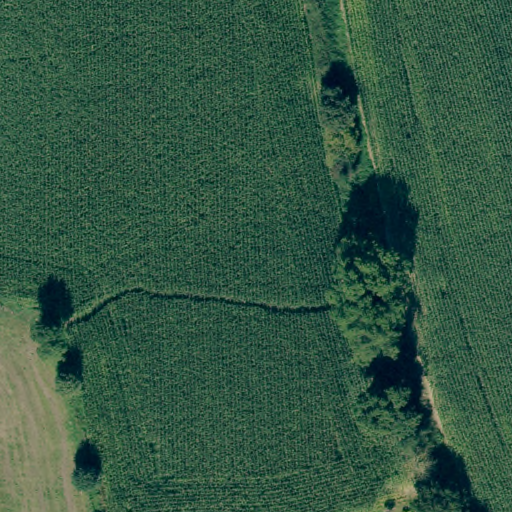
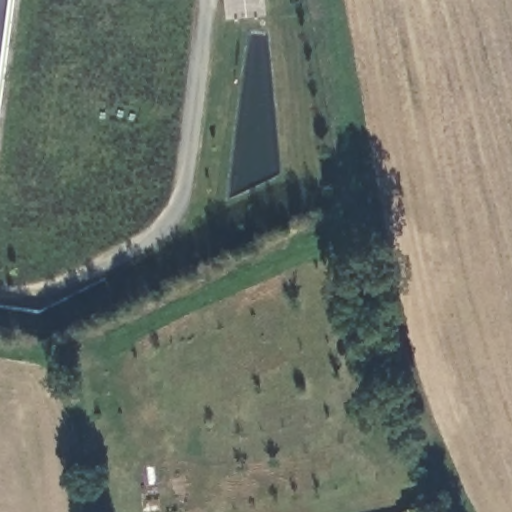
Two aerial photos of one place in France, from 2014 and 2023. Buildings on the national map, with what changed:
new [(0,0),(15,0),(0,116),(0,0)]

